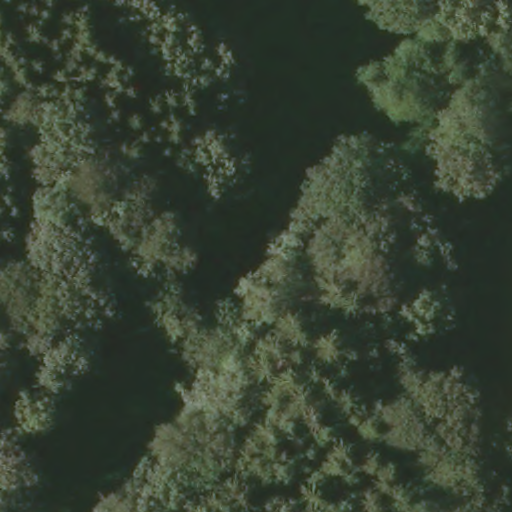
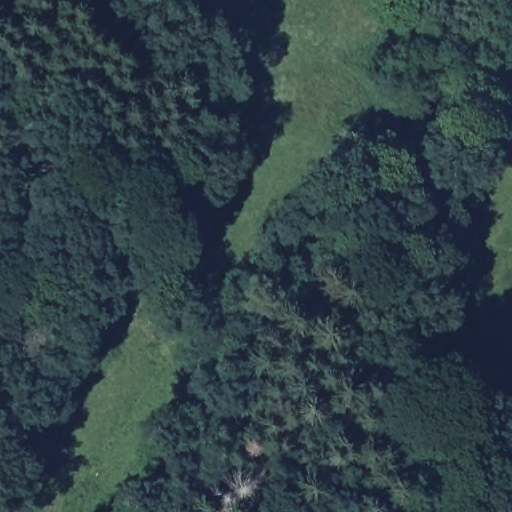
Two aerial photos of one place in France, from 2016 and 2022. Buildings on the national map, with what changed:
[]

